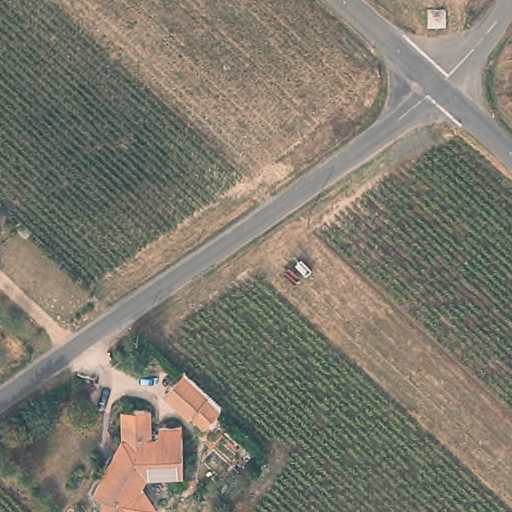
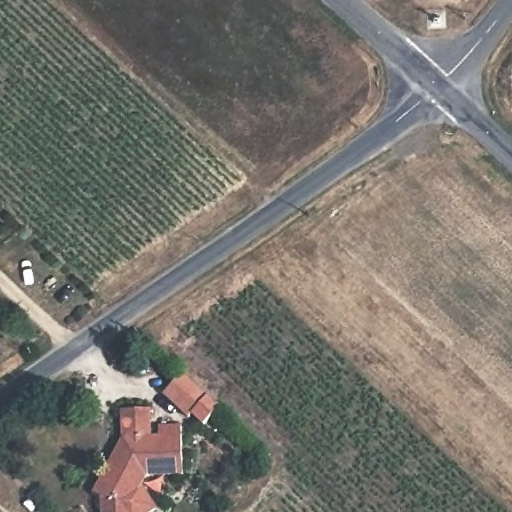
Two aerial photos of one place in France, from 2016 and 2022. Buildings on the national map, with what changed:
unchanged [(209,423),(198,413),(194,417),(168,392),(188,371),(225,407),(209,423)]
unchanged [(124,438),(124,409),(154,409),(154,438),(163,437),(163,427),(186,426),(187,475),(149,476),(146,481),(164,506),(134,505),(134,512),(103,512),(103,495),(94,490),(124,438)]

